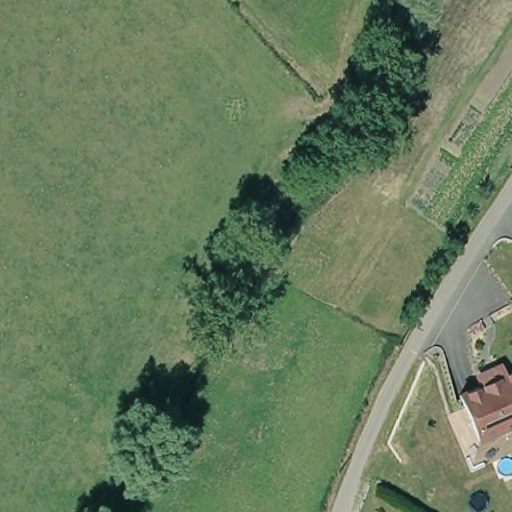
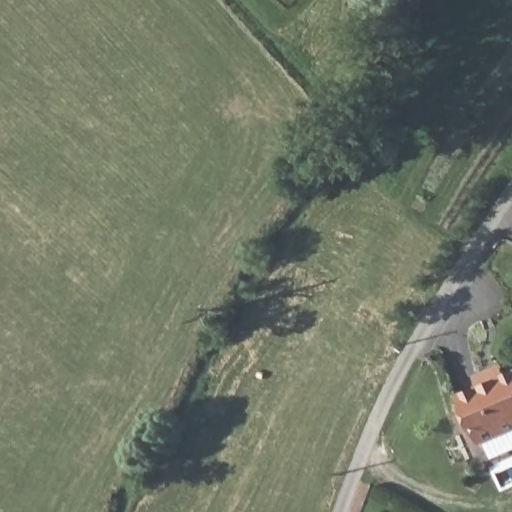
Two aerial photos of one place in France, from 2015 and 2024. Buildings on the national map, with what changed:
unchanged [(455,395),(477,386),(473,380),(497,369),(501,376),(512,371),(512,426),(477,441),(455,395)]

